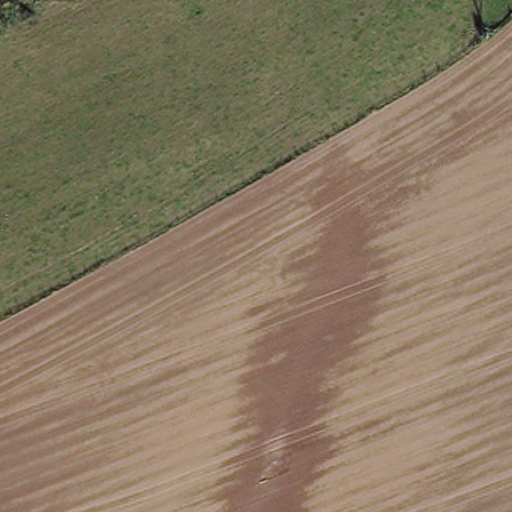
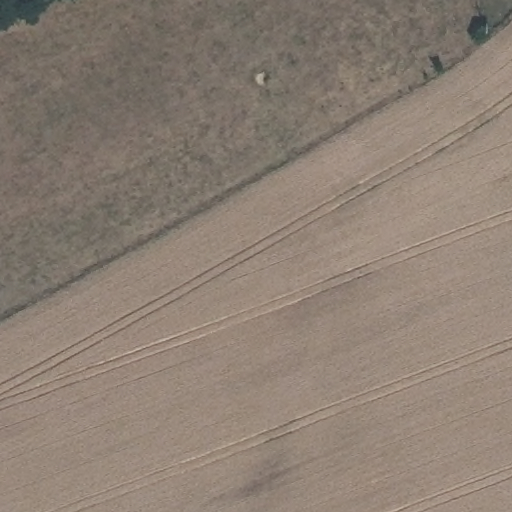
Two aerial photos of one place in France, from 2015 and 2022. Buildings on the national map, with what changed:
[]

